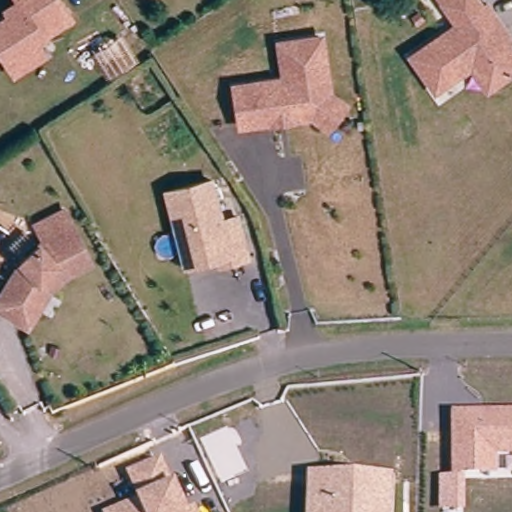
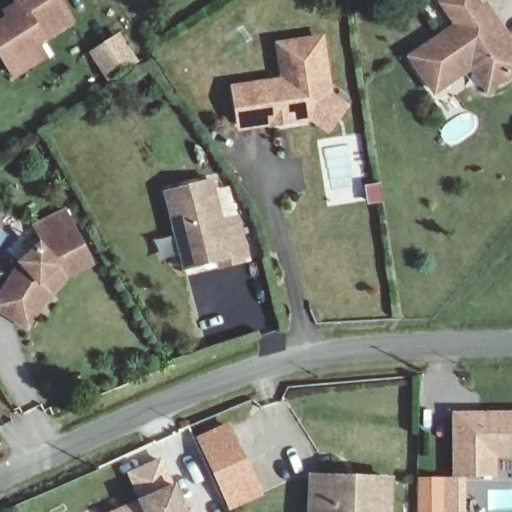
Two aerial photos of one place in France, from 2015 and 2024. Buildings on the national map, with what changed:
unchanged [(20,75),(11,61),(0,46),(0,25),(17,12),(21,17),(28,12),(19,0),(62,0),(74,17),(57,30),(47,36),(40,41),(49,55),(20,75)]
unchanged [(411,57),(457,25),(440,0),(477,0),(482,7),(487,4),(497,18),(510,37),(506,40),(512,50),(512,74),(500,82),(488,90),(471,64),(433,90),(411,57)]
new [(89,53),(121,32),(139,61),(107,81),(89,53)]
unchanged [(277,121),(244,127),(237,90),(287,80),(282,45),(323,37),(332,93),(348,104),(332,127),(317,116),(296,120),(278,124),(277,121)]
unchanged [(219,261),(205,265),(186,270),(175,233),(166,196),(210,185),(221,225),(237,220),(248,261),(231,266),(221,269),(219,261)]
unchanged [(45,245),(52,244),(46,224),(76,215),(96,270),(71,279),(69,275),(50,289),(43,301),(51,305),(41,319),(10,302),(28,267),(45,245)]
unchanged [(512,412),(512,459),(496,460),(496,480),(465,480),(465,512),(439,512),(440,478),(452,478),(452,412),(512,412)]
new [(263,496),(231,510),(197,439),(230,425),(263,496)]
unchanged [(185,512),(106,512),(137,498),(126,472),(161,457),(185,512)]
unchanged [(392,512),(306,512),(308,475),(393,477),(392,512)]
unchanged [(196,512),(185,512),(194,507),(196,512)]

